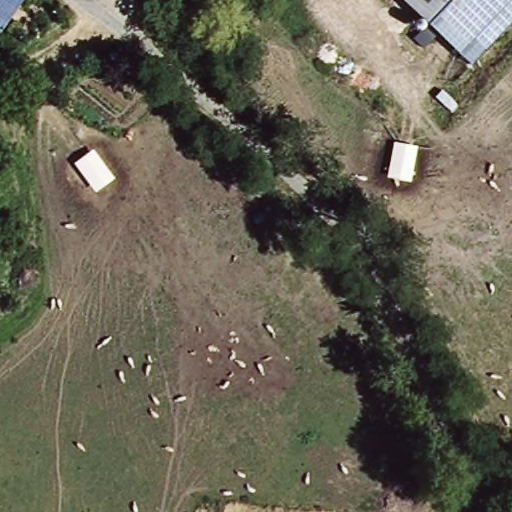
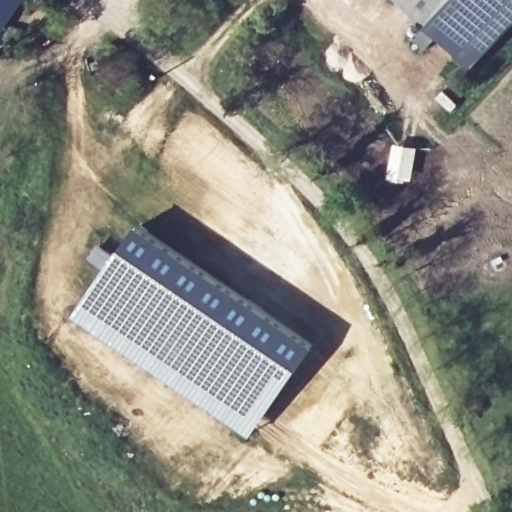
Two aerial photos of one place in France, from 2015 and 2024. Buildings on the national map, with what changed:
unchanged [(0,5),(0,0),(3,0),(0,5)]
unchanged [(411,0),(512,0),(512,22),(474,62),(411,0)]
new [(105,270),(88,258),(98,244),(115,254),(140,222),(211,269),(314,346),(276,401),(251,434),(78,309),(105,270)]

